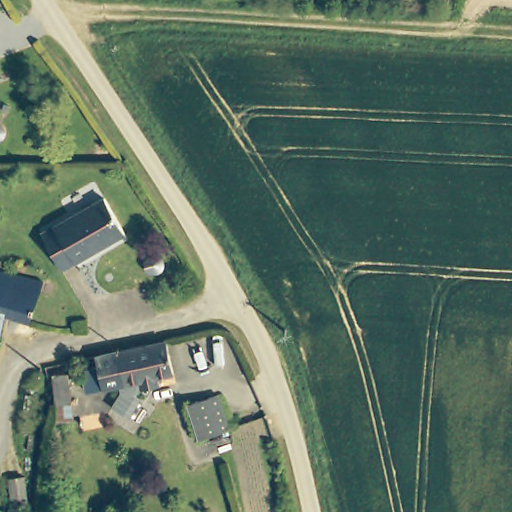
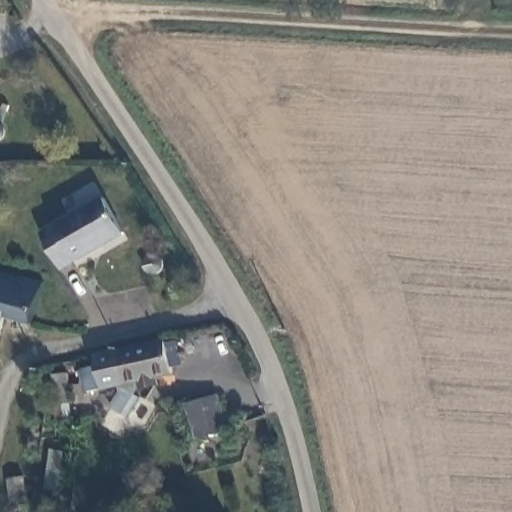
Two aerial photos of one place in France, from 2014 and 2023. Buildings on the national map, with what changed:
unchanged [(1,121),(2,122),(3,123),(4,123),(5,124),(6,125),(6,126),(7,128),(7,129),(7,130),(8,131),(7,133),(7,134),(7,135),(6,136),(6,137),(5,138),(4,139),(3,140),(2,141),(0,141),(0,121),(1,121)]
unchanged [(126,236),(62,269),(46,235),(108,201),(126,236)]
unchanged [(44,280),(42,293),(36,324),(8,320),(0,317),(0,270),(44,280)]
unchanged [(2,348),(0,356),(0,317),(8,320),(2,348)]
unchanged [(147,391),(133,410),(117,398),(127,384),(126,377),(109,381),(94,384),(89,360),(104,356),(102,348),(173,333),(180,366),(161,370),(162,377),(146,381),(142,387),(147,391)]
unchanged [(51,371),(67,370),(73,418),(56,420),(51,371)]
unchanged [(233,415),(235,426),(222,429),(206,433),(198,399),(228,392),(233,415)]
unchanged [(29,503),(10,506),(7,479),(26,477),(29,503)]

